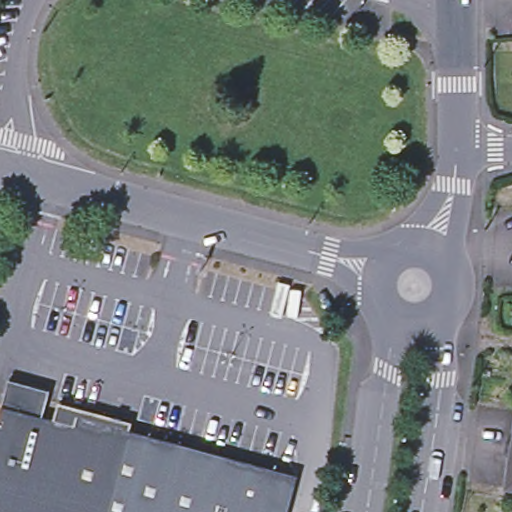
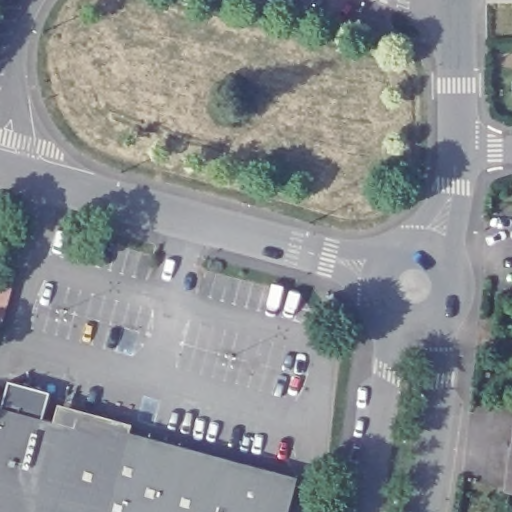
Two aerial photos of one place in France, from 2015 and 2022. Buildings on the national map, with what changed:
unchanged [(45,392),(38,419),(0,408),(0,404),(6,381),(45,392)]
unchanged [(55,405),(127,425),(123,442),(50,422),(55,405)]
unchanged [(123,442),(283,486),(276,512),(0,512),(0,408),(38,419),(50,422),(123,442)]
unchanged [(505,489),(512,439),(512,490),(505,489)]

